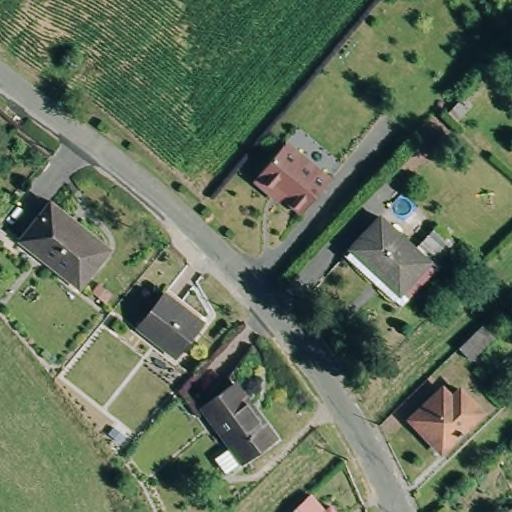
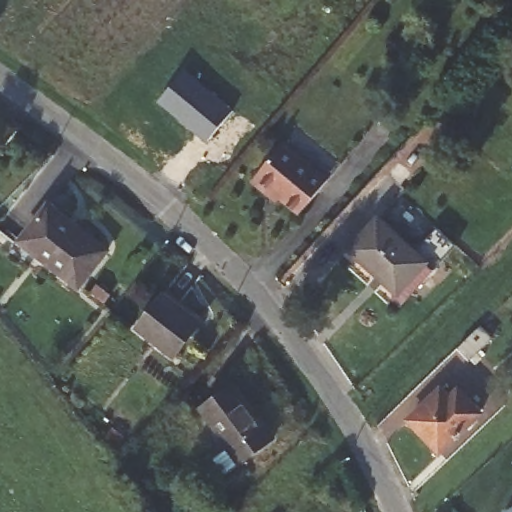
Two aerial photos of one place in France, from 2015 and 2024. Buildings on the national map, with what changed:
new [(159,100),(185,69),(234,110),(207,141),(159,100)]
new [(447,113),(462,97),(470,105),(455,121),(447,113)]
unchanged [(302,210),(282,190),(276,195),(257,175),(293,140),(335,179),(302,210)]
unchanged [(53,199),(110,251),(77,284),(23,231),(53,199)]
unchanged [(348,251),(383,209),(418,244),(436,222),(462,245),(442,267),(434,259),(402,300),(348,251)]
unchanged [(172,292),(205,322),(177,351),(145,321),(172,292)]
new [(480,325),(492,337),(469,360),(457,347),(480,325)]
unchanged [(459,357),(471,370),(448,391),(437,380),(459,357)]
unchanged [(220,458),(236,443),(207,410),(236,382),(282,433),(235,475),(220,458)]
unchanged [(443,390),(451,396),(457,390),(482,412),(445,450),(413,420),(443,390)]
unchanged [(323,511),(330,507),(333,512),(292,512),(312,494),(323,511)]

